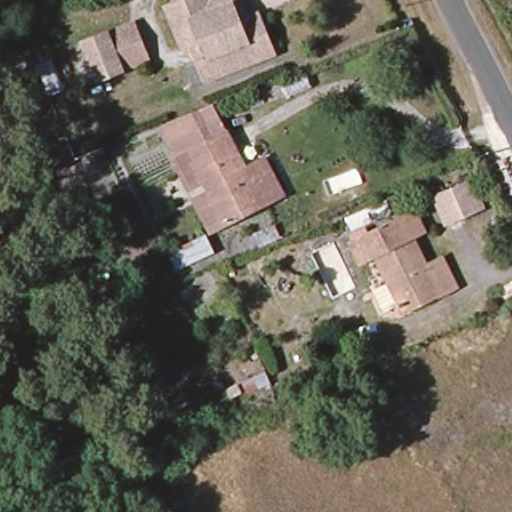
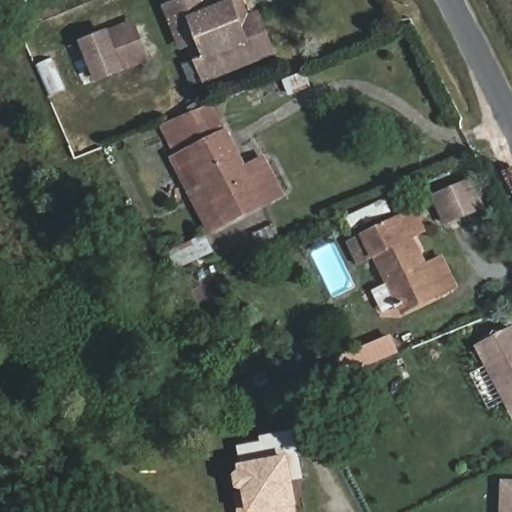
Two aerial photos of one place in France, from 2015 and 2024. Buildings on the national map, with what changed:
unchanged [(188,49),(179,51),(162,6),(177,0),(241,0),(248,16),(259,11),(276,56),(202,86),(188,49)]
unchanged [(107,30),(131,20),(148,60),(124,71),(107,30)]
unchanged [(94,83),(78,43),(107,30),(124,71),(94,83)]
demolished [(308,88),(249,115),(242,97),(303,73),(308,88)]
unchanged [(210,237),(169,158),(159,129),(211,105),(227,133),(245,165),(264,158),(284,199),(210,237)]
unchanged [(476,177),(490,212),(447,229),(433,195),(476,177)]
unchanged [(426,234),(414,241),(425,265),(431,264),(447,296),(399,318),(394,308),(381,313),(373,294),(383,282),(372,259),(358,267),(347,244),(414,211),(426,234)]
unchanged [(213,256),(177,270),(169,252),(202,234),(213,256)]
new [(475,346),(512,326),(512,417),(475,346)]
new [(294,481),(298,505),(297,512),(239,512),(237,489),(234,474),(239,470),(238,464),(243,463),(239,446),(261,442),(260,436),(295,431),(305,478),(294,481)]
new [(501,480),(512,480),(512,512),(500,512),(501,480)]

